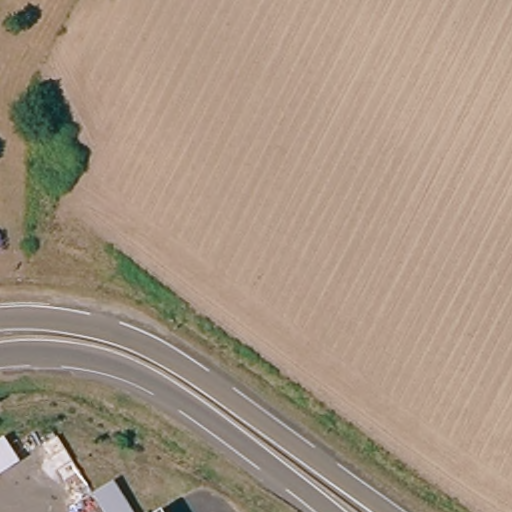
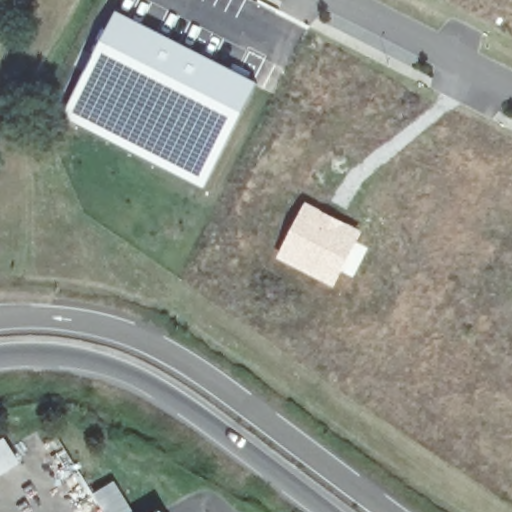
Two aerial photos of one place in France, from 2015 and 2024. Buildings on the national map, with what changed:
new [(116,10),(258,81),(203,188),(89,128),(64,113),(116,10)]
new [(305,201),(362,230),(343,273),(341,272),(333,287),(275,258),(305,201)]
unchanged [(94,492),(115,481),(134,512),(108,512),(94,492)]

